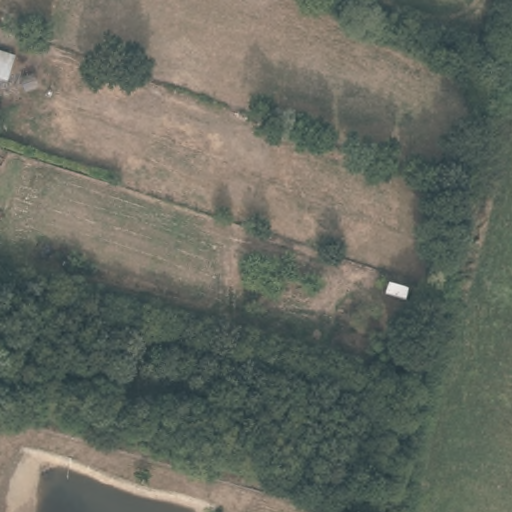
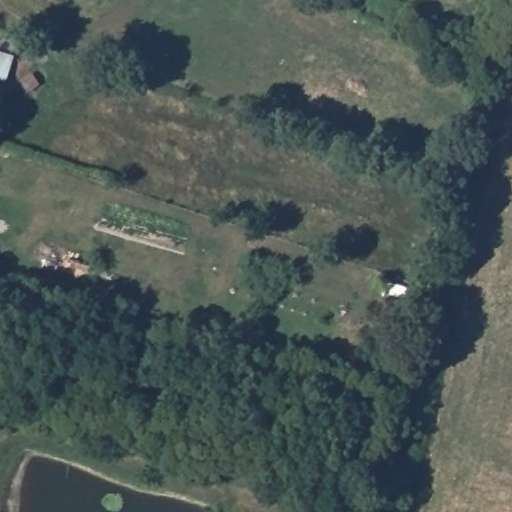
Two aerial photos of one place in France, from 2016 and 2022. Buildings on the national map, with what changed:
unchanged [(11,68),(6,88),(0,85),(0,63),(11,68)]
unchanged [(391,284),(408,289),(404,300),(387,294),(391,284)]

